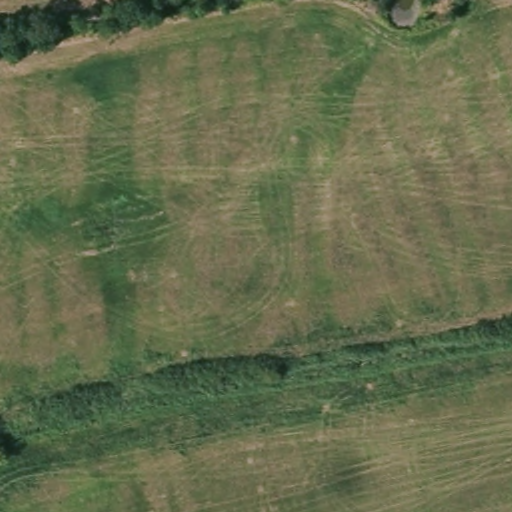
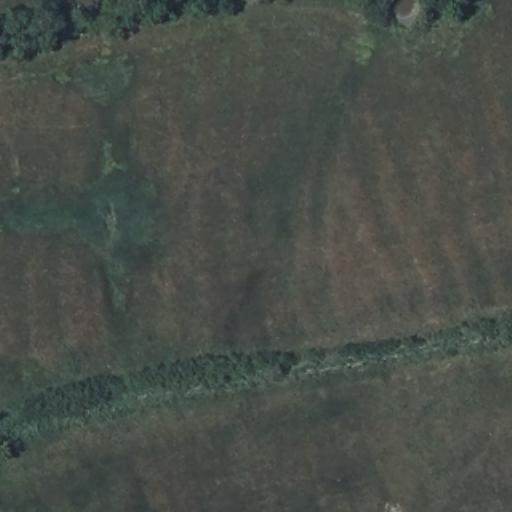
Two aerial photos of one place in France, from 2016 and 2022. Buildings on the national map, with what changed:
[]

